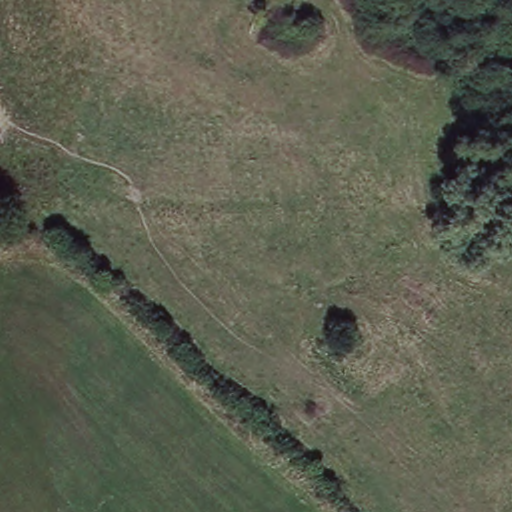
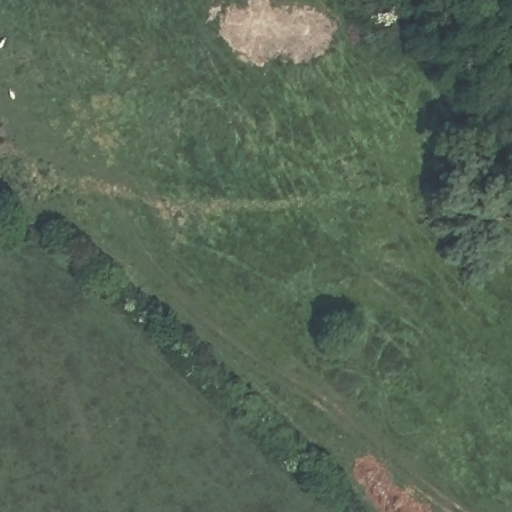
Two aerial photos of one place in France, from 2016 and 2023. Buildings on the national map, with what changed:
unchanged [(290,21),(282,46),(250,35),(258,10),(290,21)]

